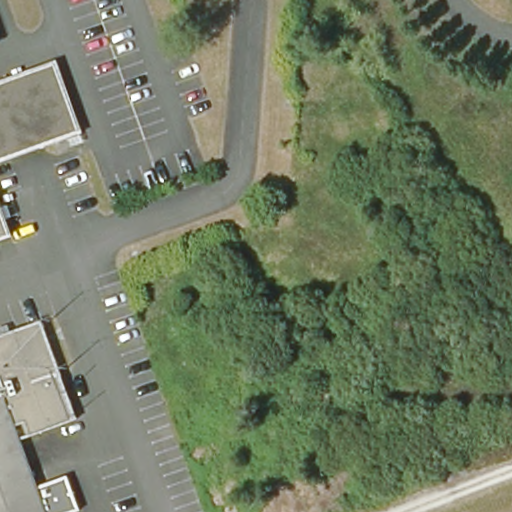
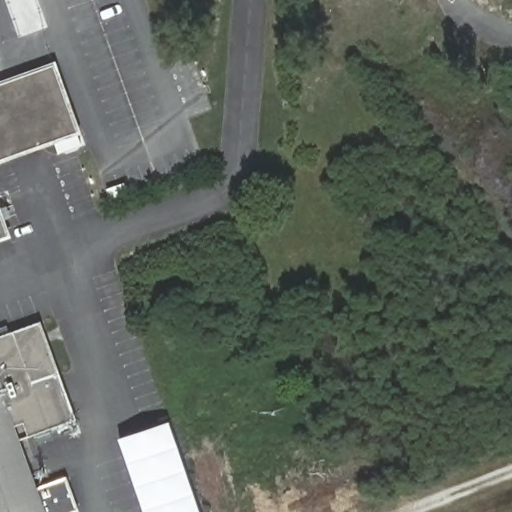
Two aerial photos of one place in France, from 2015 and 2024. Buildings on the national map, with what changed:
unchanged [(59,64),(84,131),(0,162),(0,85),(59,64)]
unchanged [(9,239),(0,242),(0,213),(9,239)]
unchanged [(40,325),(75,420),(19,438),(38,491),(69,480),(80,512),(78,512),(0,512),(0,338),(40,325)]
new [(202,512),(144,512),(119,439),(170,422),(202,512)]

